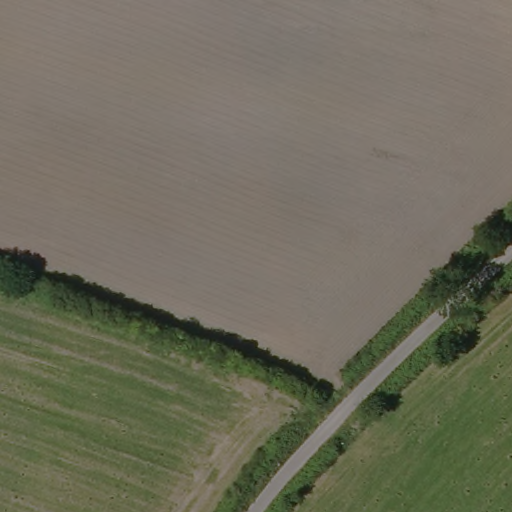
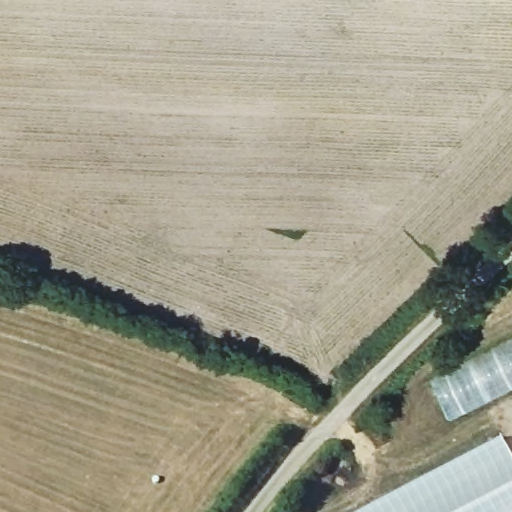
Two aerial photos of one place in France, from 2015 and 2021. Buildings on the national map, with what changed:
new [(433,381),(512,343),(512,388),(450,418),(433,381)]
new [(502,438),(512,458),(512,512),(361,512),(502,438)]

